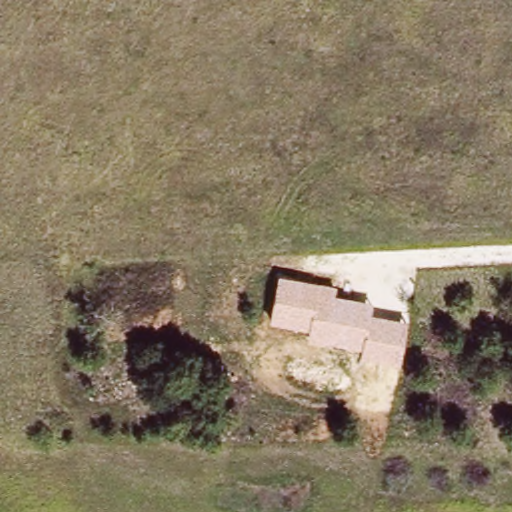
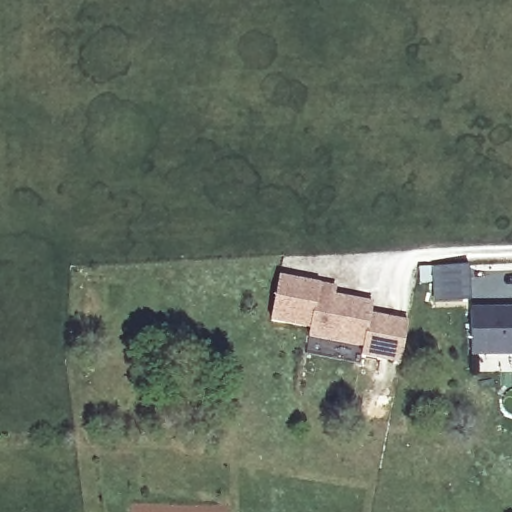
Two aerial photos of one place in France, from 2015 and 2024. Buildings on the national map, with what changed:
new [(471,264),(473,299),(433,303),(431,283),(419,284),(418,266),(471,264)]
unchanged [(337,287),(336,296),(373,303),(372,317),(408,324),(401,365),(361,358),(362,349),(306,339),(307,331),(270,324),(279,276),(337,287)]
new [(470,309),(512,308),(512,356),(470,357),(470,309)]

